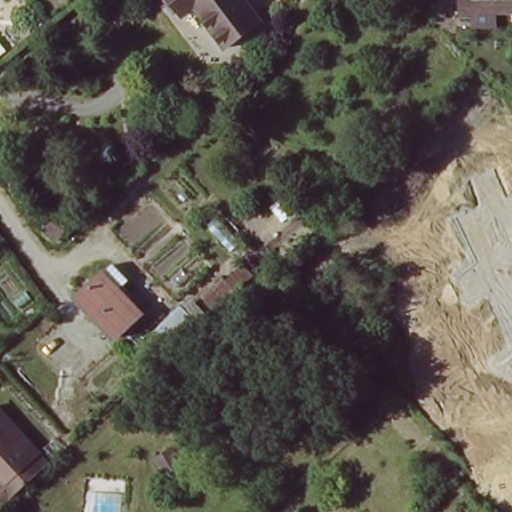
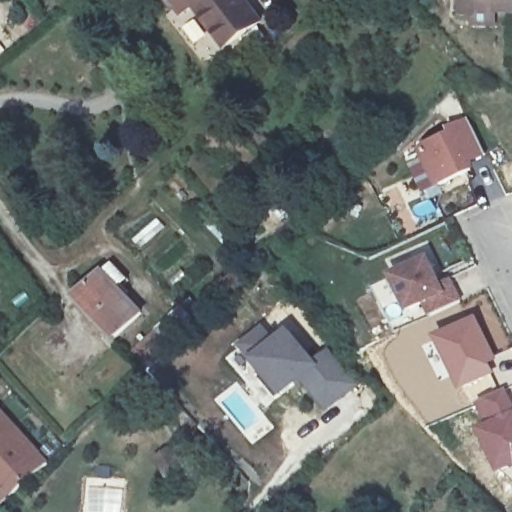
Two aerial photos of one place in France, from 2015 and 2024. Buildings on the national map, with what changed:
unchanged [(226,43),(196,6),(185,15),(174,0),(247,0),(260,16),(226,43)]
unchanged [(477,17),(458,17),(458,0),(512,0),(512,8),(511,8),(497,8),(497,26),(477,26),(477,17)]
new [(445,127),(443,122),(462,114),(477,148),(460,156),(464,162),(430,178),(413,142),(445,127)]
new [(421,254),(433,279),(445,275),(454,296),(425,310),(417,295),(403,302),(387,269),(421,254)]
unchanged [(145,312),(117,339),(75,296),(102,268),(145,312)]
unchanged [(229,299),(213,314),(201,299),(219,283),(231,297),(229,299)]
unchanged [(170,353),(153,334),(178,310),(195,330),(170,353)]
new [(477,316),(498,364),(494,366),(497,374),(460,392),(435,338),(477,316)]
new [(273,323),(282,335),(295,326),(320,356),(330,348),(357,384),(330,409),(307,380),(290,396),(248,345),(273,323)]
new [(477,429),(486,424),(475,402),(505,386),(512,398),(512,468),(500,474),(477,429)]
unchanged [(3,480),(0,477),(0,414),(47,465),(6,502),(2,505),(0,507),(0,483),(3,480)]
unchanged [(151,468),(170,456),(180,471),(182,475),(165,488),(163,486),(151,468)]

